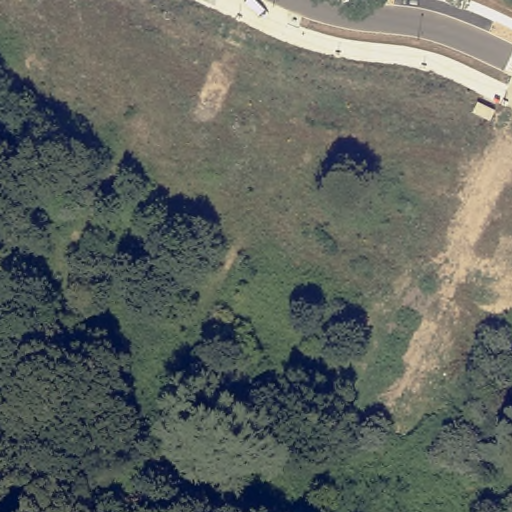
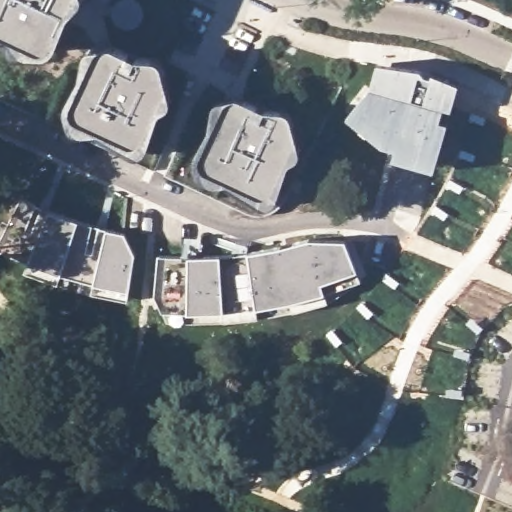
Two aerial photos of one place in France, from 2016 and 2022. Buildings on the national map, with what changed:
new [(49,46),(43,48),(38,45),(0,28),(0,0),(74,0),(54,44),(49,46)]
new [(154,59),(159,61),(161,63),(163,66),(168,86),(167,89),(145,136),(142,141),(140,143),(133,144),(128,143),(78,119),(73,116),(71,111),(70,108),(72,102),(97,48),(102,45),(107,44),(112,46),(136,57),(154,59)]
new [(369,90),(377,63),(414,71),(459,86),(434,173),(391,161),(393,151),(380,149),(345,119),(369,90)]
new [(283,111),(288,114),(290,116),(292,119),(297,139),(296,142),(274,189),(271,194),(269,196),(262,197),(257,196),(207,172),(203,169),(200,165),(199,161),(201,155),(226,101),(231,98),(236,97),(241,99),(265,110),(283,111)]
new [(18,198),(48,212),(76,222),(106,229),(123,233),(135,253),(128,293),(127,304),(89,297),(56,288),(21,274),(24,265),(0,251),(0,236),(18,198)]
new [(187,255),(220,255),(246,251),(309,239),(344,240),(355,271),(321,283),(324,293),(256,308),(223,312),(187,312),(160,312),(152,296),(155,256),(187,255)]

